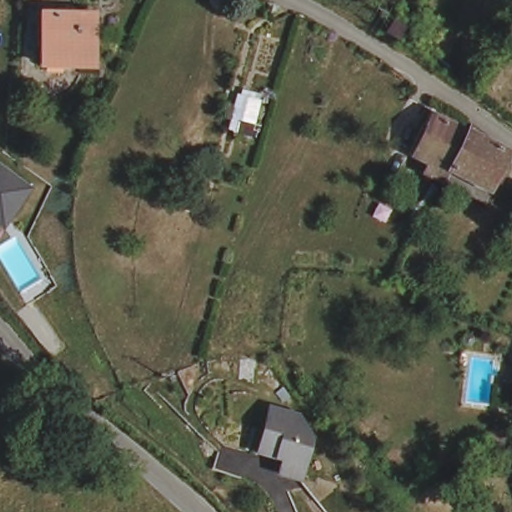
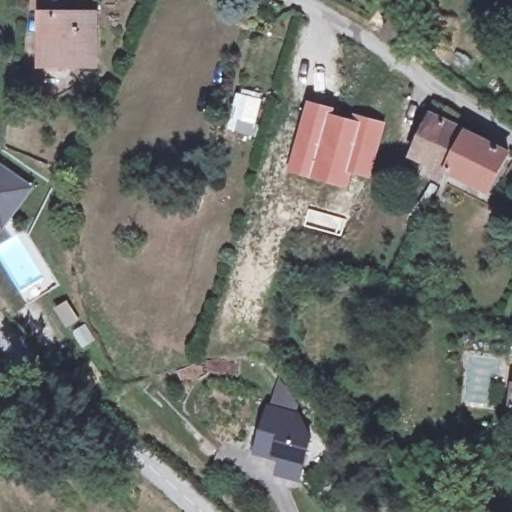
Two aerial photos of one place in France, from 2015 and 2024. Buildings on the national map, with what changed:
unchanged [(74,29),(82,30),(83,64),(28,64),(28,32),(28,7),(41,8),(74,10),(74,29)]
unchanged [(393,15),(405,22),(397,40),(384,33),(393,15)]
new [(236,91),(264,98),(254,137),(226,130),(236,91)]
new [(307,100),(387,121),(371,179),(353,174),(348,189),(286,171),(307,100)]
unchanged [(427,174),(429,167),(417,160),(406,155),(421,125),(431,133),(436,125),(466,139),(447,177),(444,184),(427,174)]
unchanged [(466,139),(509,165),(487,201),(447,177),(466,139)]
unchanged [(38,189),(7,232),(0,227),(0,164),(38,189)]
unchanged [(278,475),(281,461),(256,456),(268,408),(294,415),(310,436),(303,466),(299,480),(278,475)]
unchanged [(458,495),(433,501),(428,482),(453,476),(458,495)]

